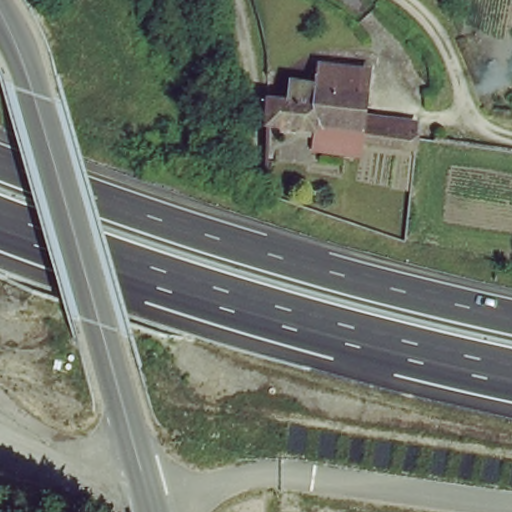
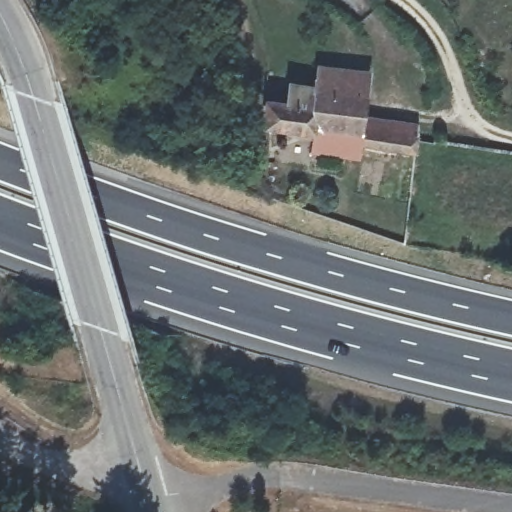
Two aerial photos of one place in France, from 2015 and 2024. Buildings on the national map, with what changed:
unchanged [(424,137),(419,151),(369,143),(364,155),(355,154),(320,150),(320,139),(271,132),(271,104),(291,106),(294,87),(320,89),(324,71),(373,78),(365,116),(425,126),(424,137)]

